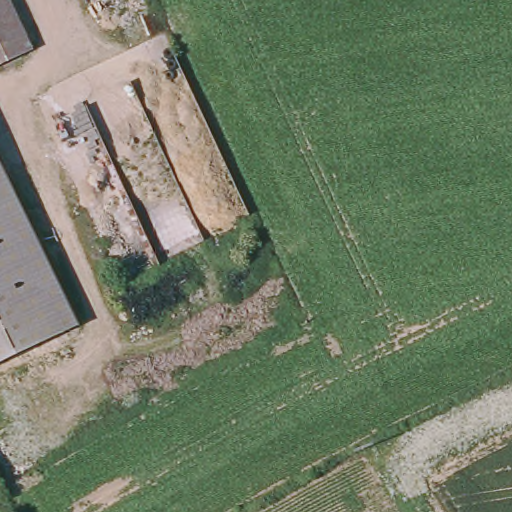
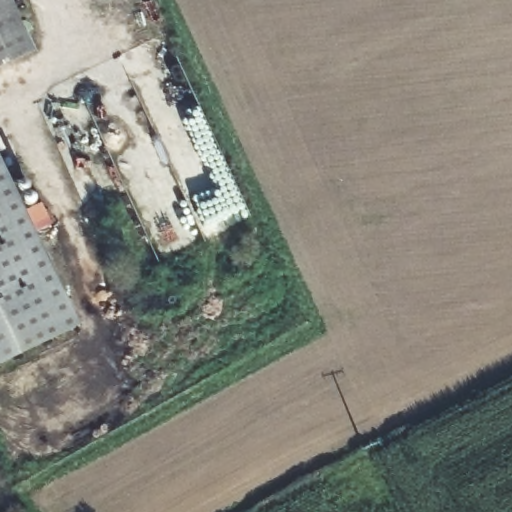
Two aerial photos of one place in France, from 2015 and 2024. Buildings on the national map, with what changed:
unchanged [(27,56),(0,67),(0,0),(2,0),(27,56)]
unchanged [(81,322),(0,367),(0,159),(81,322)]

